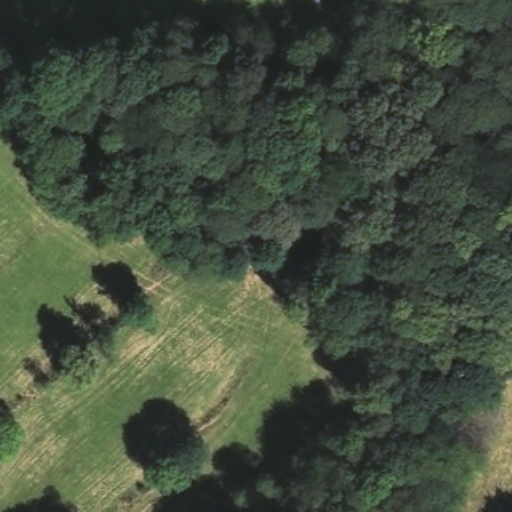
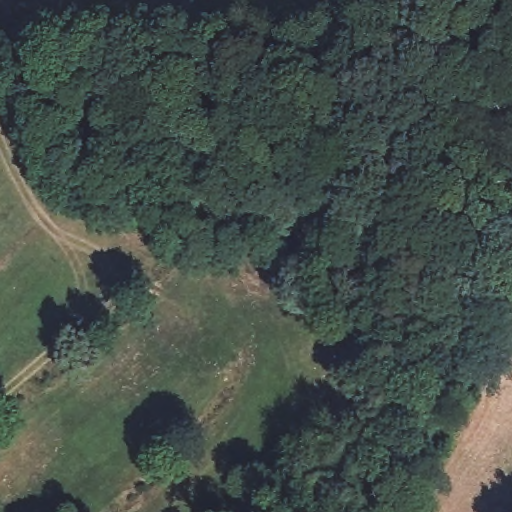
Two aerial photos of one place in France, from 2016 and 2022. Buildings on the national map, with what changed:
[]

